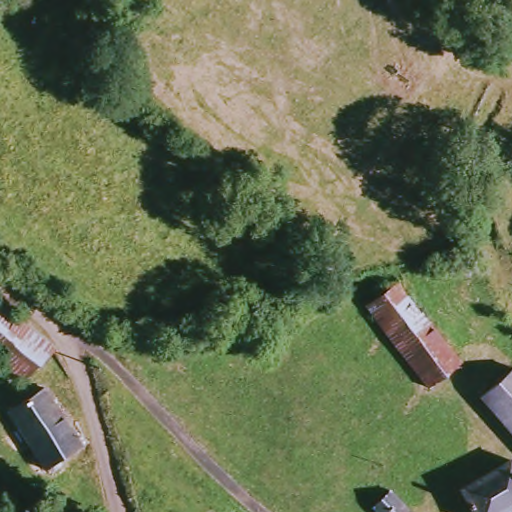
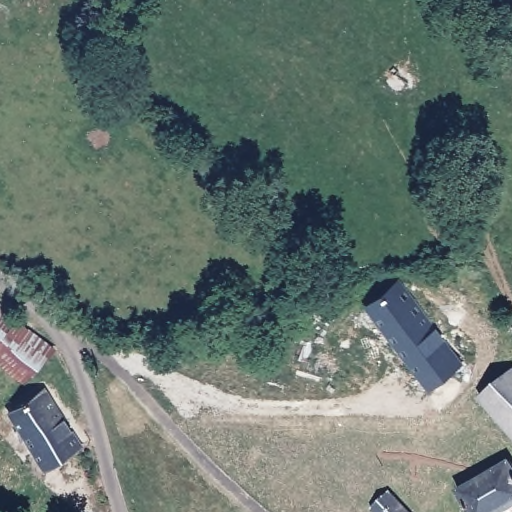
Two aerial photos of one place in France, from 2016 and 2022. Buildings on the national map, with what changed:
unchanged [(460,361),(427,390),(356,312),(390,283),(460,361)]
unchanged [(50,343),(27,382),(0,363),(0,306),(50,343)]
unchanged [(512,366),(512,436),(475,393),(512,366)]
unchanged [(85,447),(35,471),(5,410),(45,389),(67,437),(80,432),(85,447)]
unchanged [(512,508),(506,512),(475,512),(461,492),(507,458),(512,464),(512,508)]
unchanged [(417,512),(383,512),(373,502),(391,484),(417,512)]

